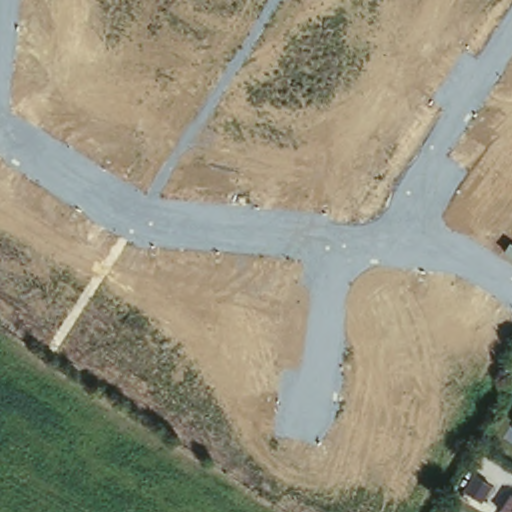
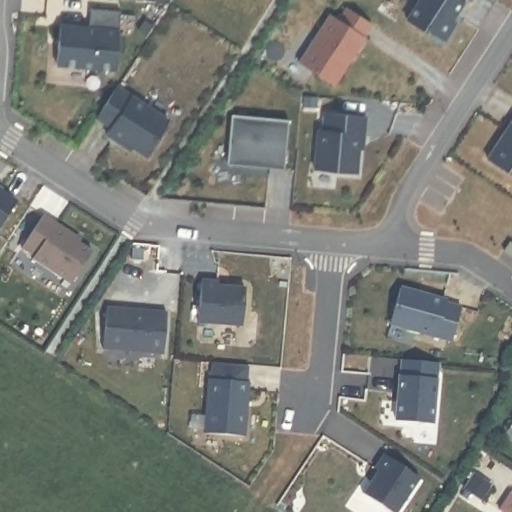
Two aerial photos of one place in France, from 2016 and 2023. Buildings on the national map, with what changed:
new [(459,0),(449,16),(453,19),(441,37),(424,26),(422,29),(405,17),(416,0),(459,0)]
new [(328,11),(336,17),(344,4),(369,21),(361,33),(363,34),(332,82),(296,60),(328,11)]
new [(57,23),(86,26),(88,6),(118,8),(112,67),(53,61),(57,23)]
new [(114,84),(165,117),(143,152),(122,139),(120,142),(104,131),(108,124),(94,115),(114,84)]
new [(316,127),(321,127),(322,110),(364,114),(362,132),(358,132),(354,171),(312,167),(316,127)]
new [(229,112),(286,117),(281,167),(224,162),(229,112)]
new [(512,174),(486,157),(512,116),(512,174)]
new [(1,186),(0,187),(0,186),(1,186)]
new [(13,199),(0,219),(0,190),(13,199)]
new [(41,212),(67,229),(64,232),(89,249),(68,282),(30,257),(31,254),(19,246),(41,212)]
new [(199,277),(216,279),(216,283),(242,286),(239,325),(195,321),(199,277)]
new [(400,287),(443,298),(442,302),(456,305),(448,337),(389,321),(400,287)]
new [(104,305),(164,310),(160,352),(100,347),(104,305)]
new [(399,377),(400,377),(401,357),(436,362),(432,425),(397,420),(399,377)]
new [(206,377),(209,377),(210,361),(245,363),(244,381),(246,381),(241,435),(201,431),(206,377)]
unchanged [(512,424),(510,423),(512,419),(512,424)]
new [(375,468),(372,466),(381,452),(416,476),(393,512),(391,512),(360,491),(375,468)]
unchanged [(507,496),(512,498),(512,512),(497,512),(507,496)]

